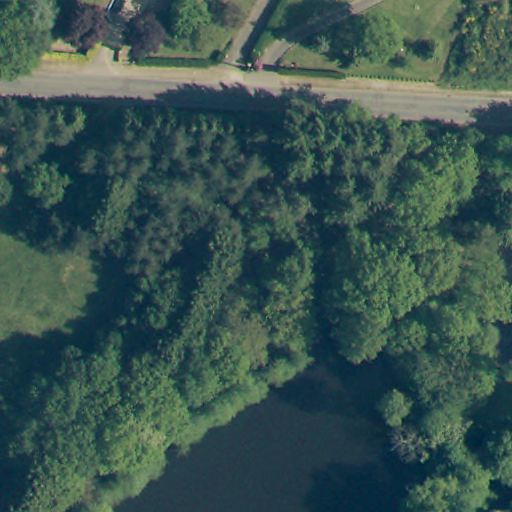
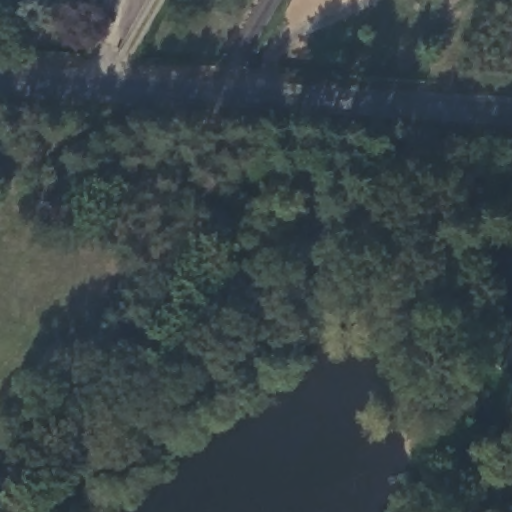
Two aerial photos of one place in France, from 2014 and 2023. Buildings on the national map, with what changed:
unchanged [(40,192),(62,194),(61,210),(38,208),(40,192)]

